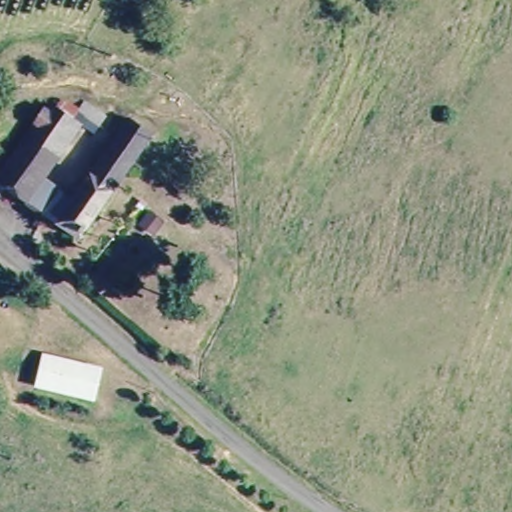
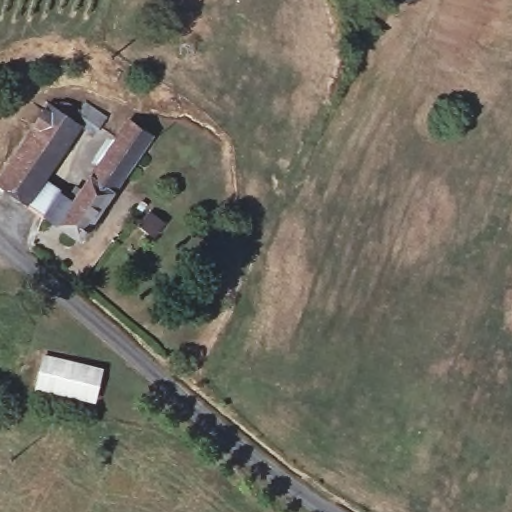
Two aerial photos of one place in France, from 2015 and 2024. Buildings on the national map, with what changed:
unchanged [(25,202),(0,185),(0,183),(53,106),(81,125),(25,202)]
unchanged [(94,133),(81,125),(89,113),(101,122),(94,133)]
unchanged [(127,121),(152,139),(80,241),(56,224),(127,121)]
unchanged [(90,399),(35,384),(38,371),(42,355),(97,370),(94,382),(90,399)]

